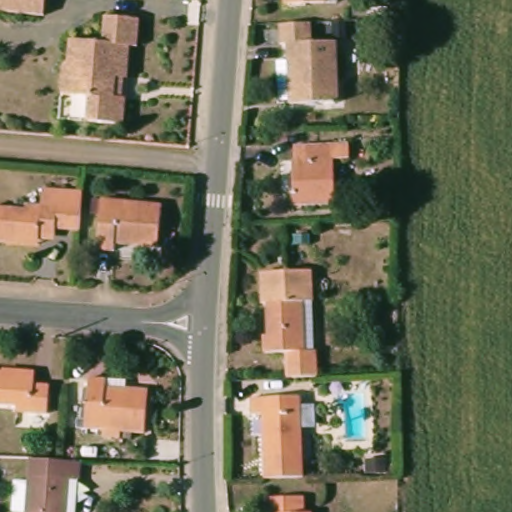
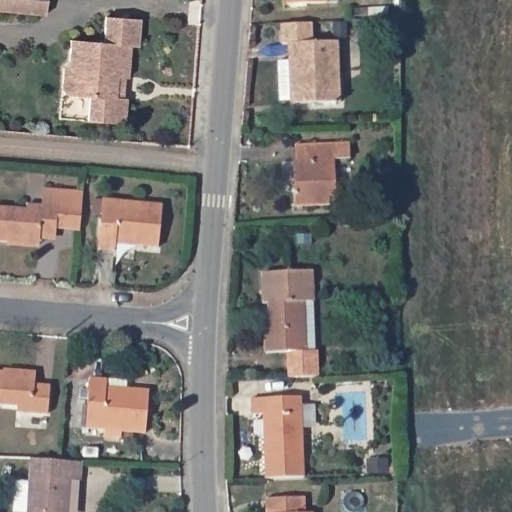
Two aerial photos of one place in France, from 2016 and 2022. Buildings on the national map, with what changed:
unchanged [(0,13),(0,0),(39,0),(37,16),(0,13)]
unchanged [(289,0),(323,0),(289,3),(289,0)]
unchanged [(123,99),(120,125),(84,121),(86,97),(63,95),(59,90),(60,66),(66,62),(68,41),(101,43),(101,41),(103,18),(137,21),(135,45),(135,48),(127,46),(125,79),(121,79),(120,99),(123,99)]
unchanged [(290,62),(288,42),(281,43),(280,24),(311,22),(312,41),(337,40),(342,100),(282,105),(280,63),(290,62)]
unchanged [(297,160),(296,146),(353,141),(354,158),(338,159),(340,203),(298,206),(295,160),(297,160)]
unchanged [(4,243),(0,242),(0,207),(25,210),(25,206),(40,207),(42,191),(81,193),(79,220),(77,233),(55,231),(54,238),(40,236),(40,239),(40,246),(4,243)]
unchanged [(115,251),(96,249),(100,199),(161,204),(157,247),(135,245),(115,243),(115,251)]
unchanged [(267,302),(266,272),(315,270),(318,350),(320,350),(320,376),(290,377),(289,351),(268,352),(267,336),(273,335),(272,302),(267,302)]
unchanged [(7,367),(7,373),(38,375),(38,380),(54,382),(51,412),(21,410),(21,404),(0,402),(0,366),(7,367)]
unchanged [(108,431),(109,425),(90,423),(94,373),(111,374),(130,376),(130,383),(153,385),(150,428),(125,426),(125,432),(108,431)]
unchanged [(252,415),(251,394),(302,391),(306,473),(267,475),(265,415),(252,415)]
unchanged [(67,508),(67,512),(27,512),(30,452),(61,453),(80,453),(80,472),(77,509),(67,508)]
unchanged [(262,493),(301,493),(302,508),(308,507),(309,512),(271,512),(270,510),(263,511),(262,493)]

